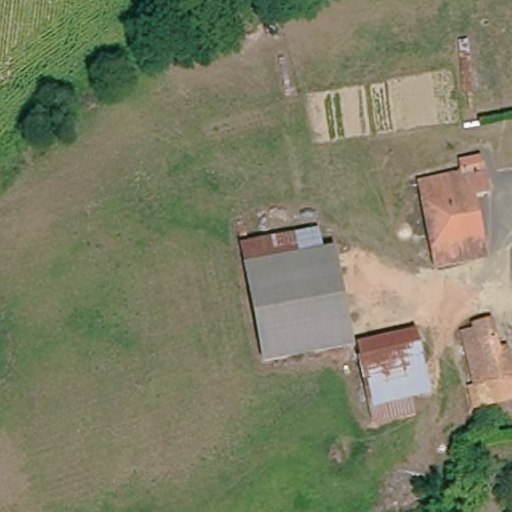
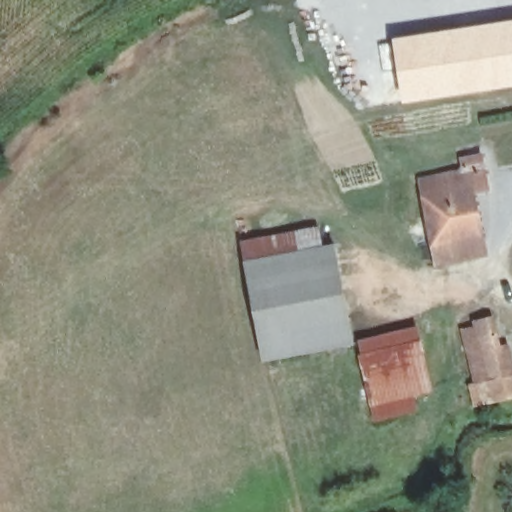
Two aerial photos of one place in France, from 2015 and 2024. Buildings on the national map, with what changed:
new [(512,85),(476,91),(401,101),(391,37),(512,19),(512,85)]
unchanged [(467,195),(475,255),(435,262),(434,257),(419,182),(461,176),(460,165),(460,161),(465,160),(484,157),(486,171),(488,191),(467,195)]
unchanged [(247,242),(298,236),(302,255),(249,262),(247,242)]
unchanged [(302,255),(341,250),(352,343),(262,357),(249,262),(302,255)]
unchanged [(512,353),(512,395),(473,401),(471,386),(479,384),(468,333),(482,329),(481,322),(499,321),(506,354),(512,353)]
unchanged [(407,392),(409,410),(372,412),(361,343),(422,334),(428,390),(407,392)]

